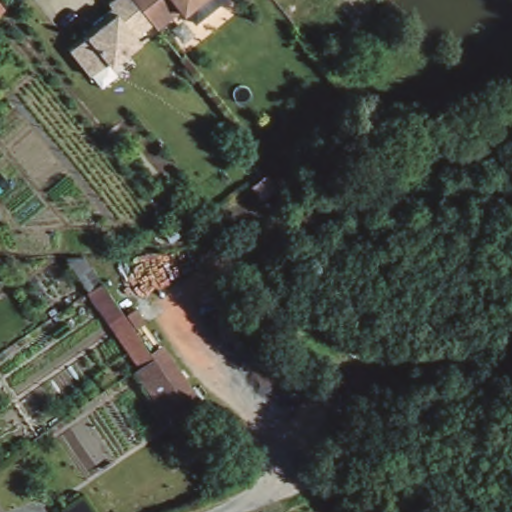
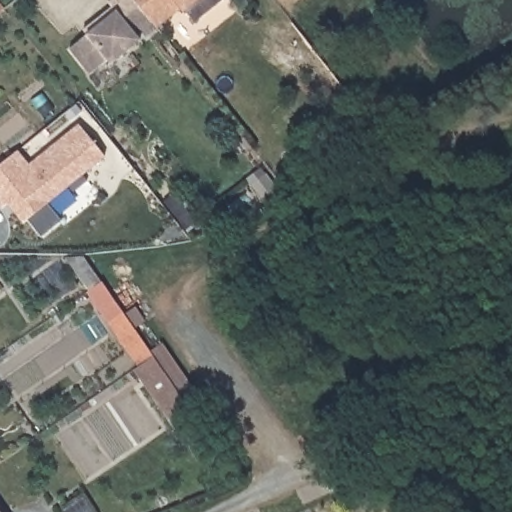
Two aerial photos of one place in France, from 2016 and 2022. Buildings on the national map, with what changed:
unchanged [(175,8),(149,29),(146,25),(80,76),(61,49),(105,15),(100,5),(107,0),(217,0),(187,22),(175,8)]
new [(61,222),(41,236),(29,220),(22,224),(7,205),(2,209),(0,207),(0,166),(19,152),(28,165),(79,125),(105,158),(48,204),(61,222)]
unchanged [(151,391),(140,375),(142,373),(89,301),(59,261),(84,261),(106,290),(159,362),(170,377),(197,417),(180,431),(151,391)]

